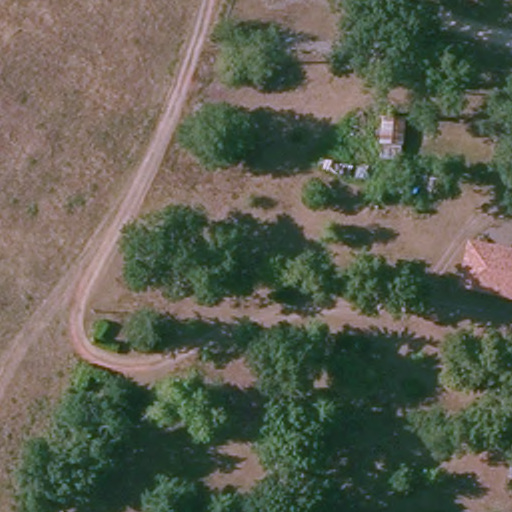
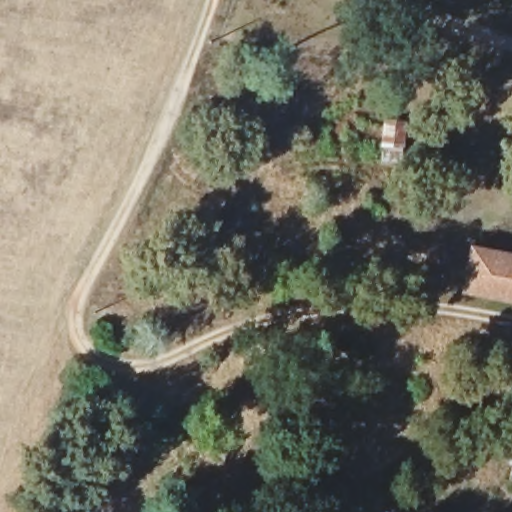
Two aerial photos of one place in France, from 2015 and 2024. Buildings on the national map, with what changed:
unchanged [(458,295),(468,252),(512,261),(512,306),(458,295)]

